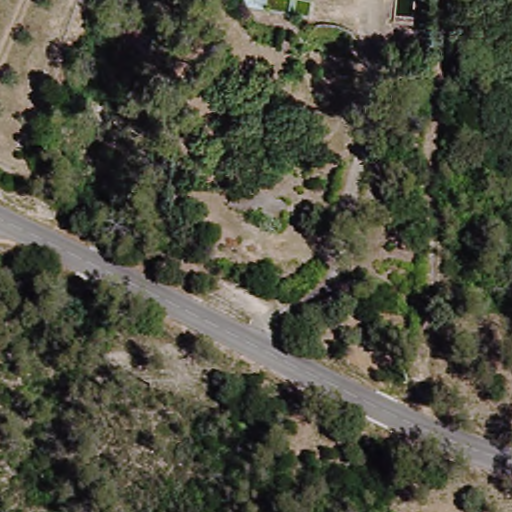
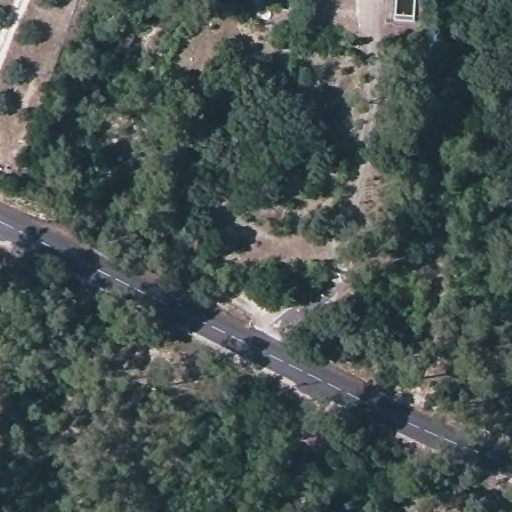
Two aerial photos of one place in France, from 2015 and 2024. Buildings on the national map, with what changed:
[]

